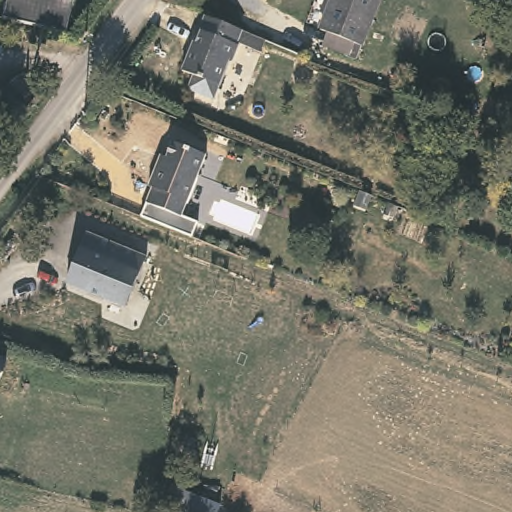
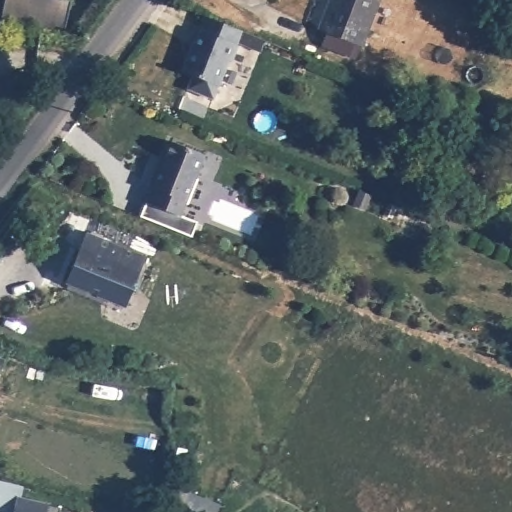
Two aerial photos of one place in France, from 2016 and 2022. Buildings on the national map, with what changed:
unchanged [(4,17),(7,0),(71,0),(65,29),(4,17)]
unchanged [(350,40),(345,53),(318,42),(324,27),(317,25),(327,0),(374,0),(357,42),(350,40)]
unchanged [(211,97),(187,85),(194,72),(181,65),(196,33),(200,34),(204,27),(202,24),(210,11),(244,24),(239,36),(239,41),(231,58),(228,59),(211,97)]
unchanged [(208,152),(182,215),(147,200),(153,187),(149,185),(159,162),(163,164),(174,139),(208,152)]
unchanged [(145,257),(125,306),(64,280),(86,231),(145,257)]
unchanged [(6,357),(0,377),(0,356),(6,357)]
new [(5,482),(26,487),(23,498),(63,508),(62,512),(3,512),(0,511),(0,481),(5,482)]
unchanged [(219,503),(216,512),(167,512),(160,510),(170,485),(219,503)]

